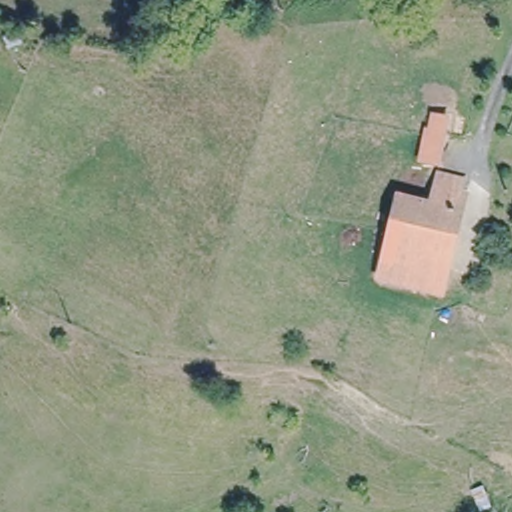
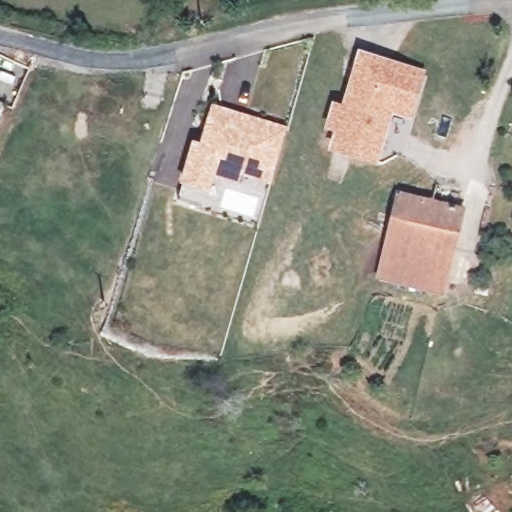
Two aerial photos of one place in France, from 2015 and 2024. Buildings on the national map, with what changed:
new [(427,69),(412,121),(393,114),(379,164),(329,149),(335,130),(325,127),(333,101),(343,103),(359,50),(427,69)]
new [(193,144),(201,147),(213,108),(229,113),(243,117),(286,130),(273,175),(232,163),(210,175),(206,189),(182,182),(186,167),(193,144)]
unchanged [(397,195),(431,203),(458,209),(445,264),(384,250),(397,195)]
unchanged [(384,250),(445,264),(439,288),(379,272),(384,250)]

